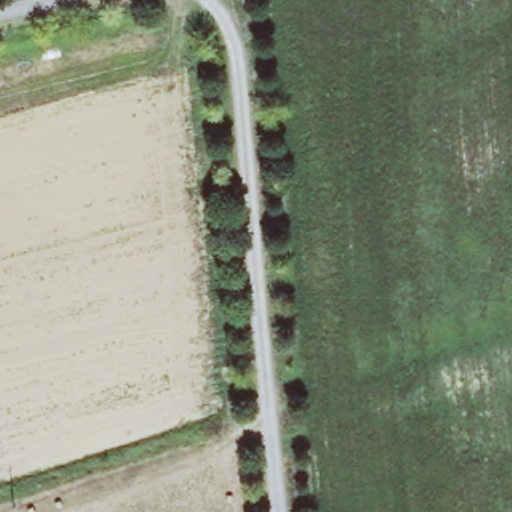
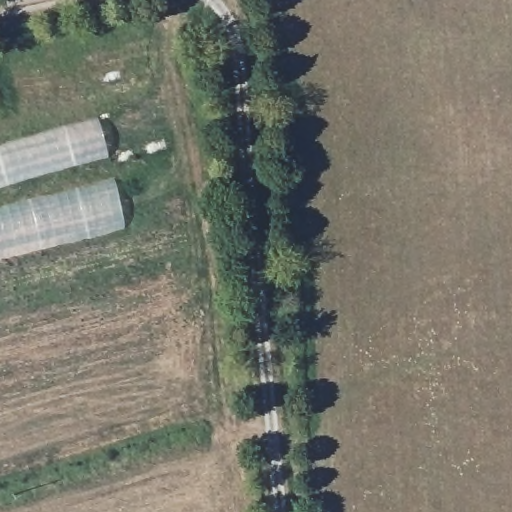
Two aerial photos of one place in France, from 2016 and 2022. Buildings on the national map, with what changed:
new [(106,159),(0,188),(0,147),(95,119),(106,159)]
new [(125,228),(0,260),(0,208),(114,179),(125,228)]

